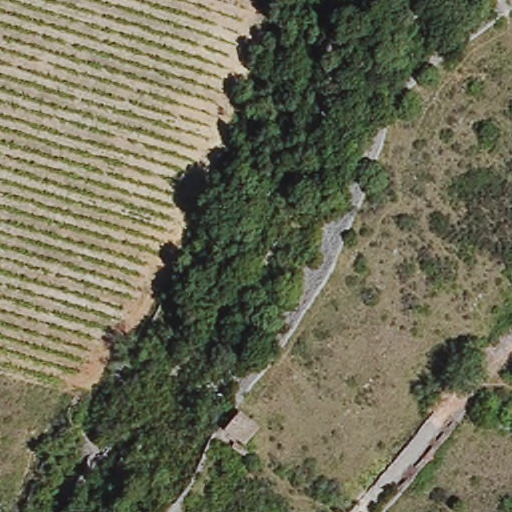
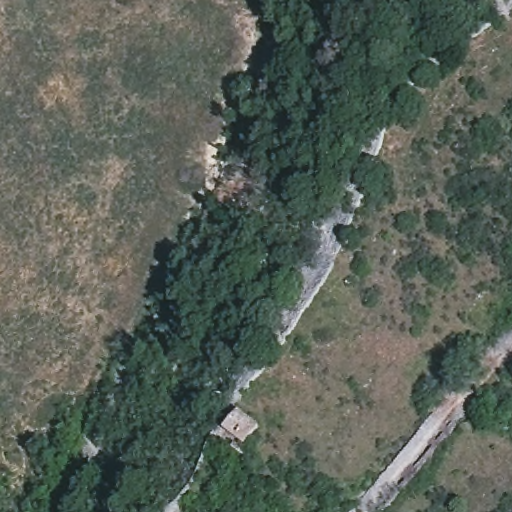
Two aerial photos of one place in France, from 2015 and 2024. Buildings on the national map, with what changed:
unchanged [(245,445),(222,428),(238,410),(258,425),(245,445)]

